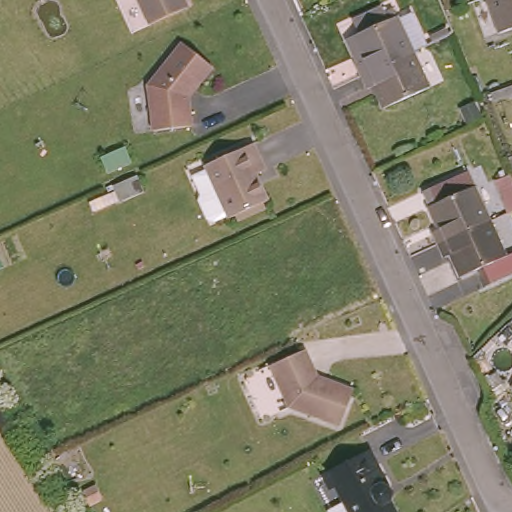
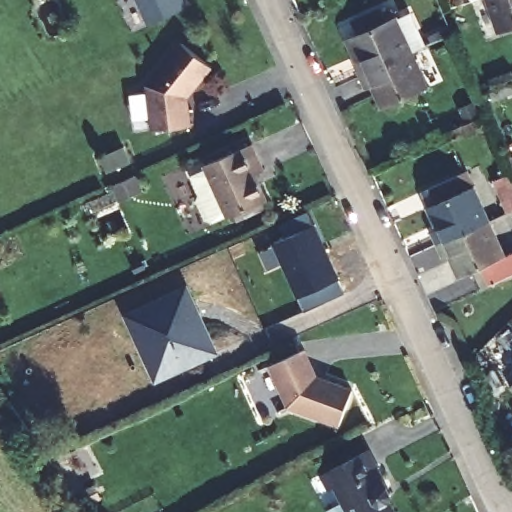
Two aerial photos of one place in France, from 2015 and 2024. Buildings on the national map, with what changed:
unchanged [(187,0),(190,5),(152,23),(142,0),(187,0)]
unchanged [(497,34),(486,0),(512,0),(512,29),(497,34)]
unchanged [(356,22),(386,9),(392,24),(402,19),(402,21),(414,16),(427,46),(415,51),(406,55),(360,75),(355,64),(364,59),(356,39),(362,36),(356,22)]
unchanged [(146,86),(182,41),(212,66),(187,96),(191,125),(152,131),(146,86)]
unchanged [(423,94),(386,109),(376,87),(367,90),(360,75),(406,55),(423,94)]
unchanged [(262,141),(269,165),(261,171),(271,200),(230,220),(207,164),(262,141)]
unchanged [(437,227),(445,223),(427,183),(465,165),(488,217),(442,238),(437,227)]
unchanged [(507,165),(512,176),(512,197),(506,200),(494,172),(507,165)]
new [(316,227),(347,292),(306,310),(274,243),(287,238),(280,223),(310,210),(316,227)]
unchanged [(506,257),(512,254),(512,274),(489,284),(481,266),(467,272),(457,249),(450,252),(442,238),(488,217),(506,257)]
new [(221,352),(156,383),(124,313),(188,283),(221,352)]
unchanged [(307,347),(321,377),(330,380),(330,378),(356,388),(342,424),(290,404),(272,362),(307,347)]
unchanged [(375,444),(399,491),(395,498),(402,512),(357,512),(344,484),(337,486),(329,467),(375,444)]

